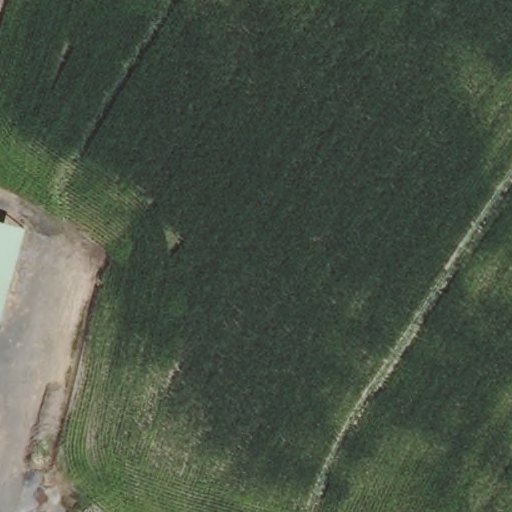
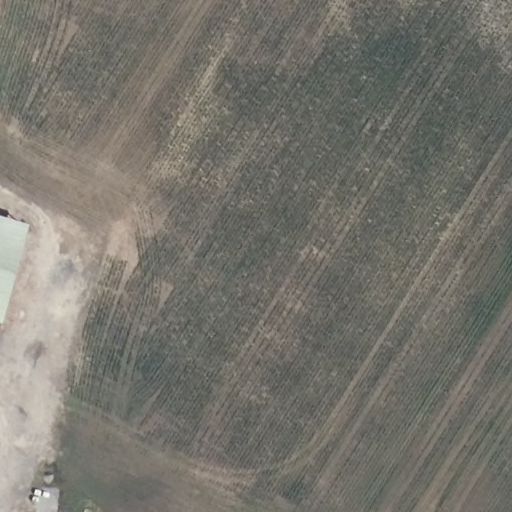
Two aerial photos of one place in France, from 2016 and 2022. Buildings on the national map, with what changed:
unchanged [(0,221),(50,237),(20,333),(0,326),(0,221)]

